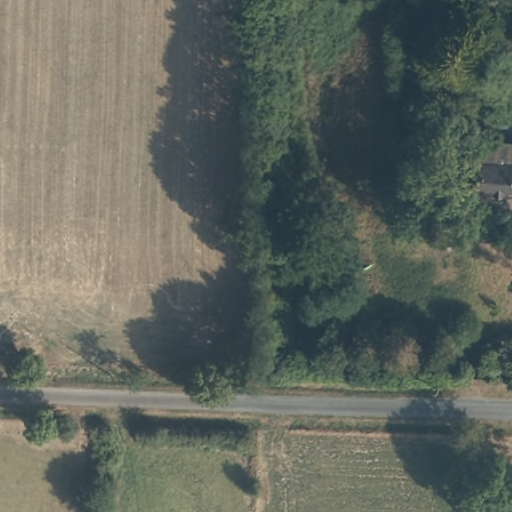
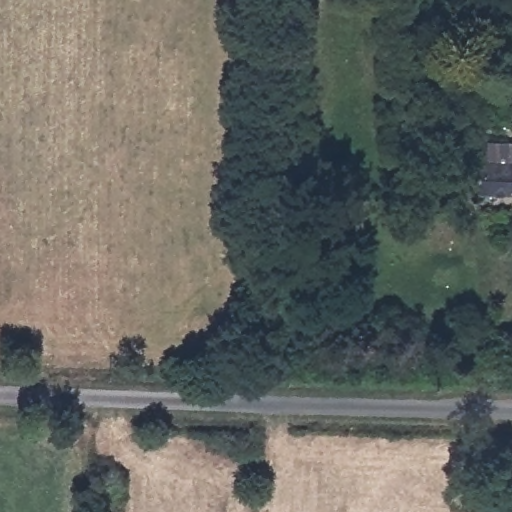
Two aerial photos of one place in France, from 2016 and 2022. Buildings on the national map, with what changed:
unchanged [(477,184),(478,136),(512,138),(512,186),(477,184)]
unchanged [(0,369),(1,349),(21,350),(21,369),(0,369)]

